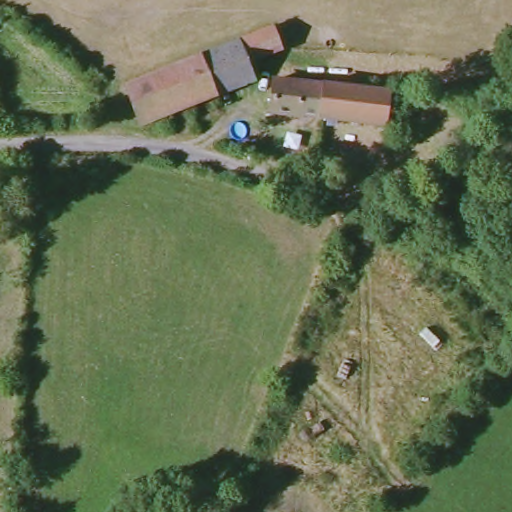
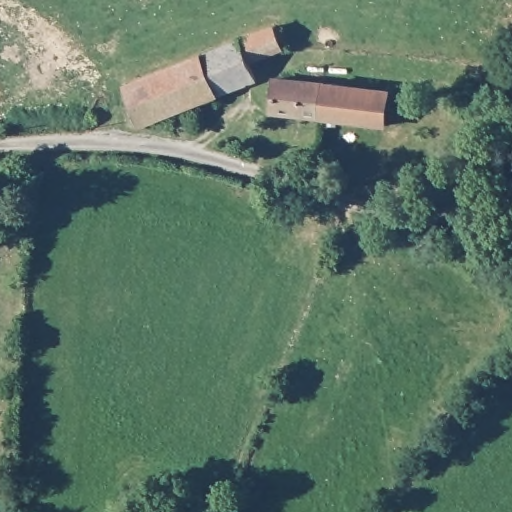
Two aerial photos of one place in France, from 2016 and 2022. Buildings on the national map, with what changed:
unchanged [(181,61),(272,23),(286,45),(249,60),(254,78),(138,120),(125,84),(181,61)]
unchanged [(390,91),(385,124),(267,110),(269,80),(327,85),(390,91)]

